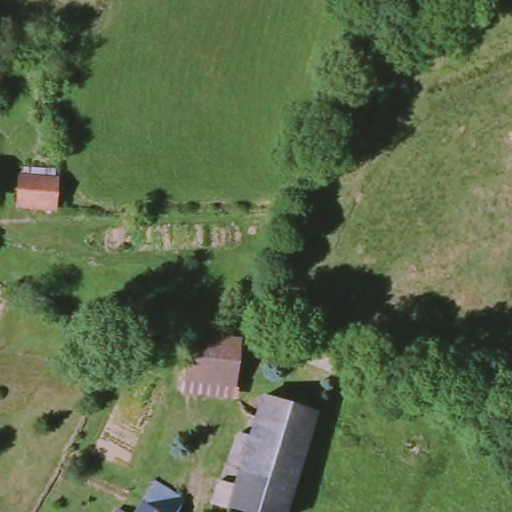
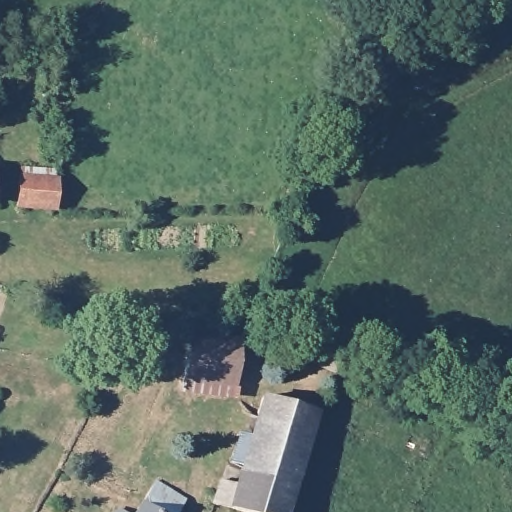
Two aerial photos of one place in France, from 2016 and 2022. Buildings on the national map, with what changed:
unchanged [(42,206),(22,205),(23,176),(42,178),(60,177),(62,206),(42,206)]
unchanged [(332,371),(310,362),(318,338),(340,346),(332,371)]
unchanged [(239,392),(189,386),(195,344),(245,350),(239,392)]
unchanged [(228,512),(212,506),(220,484),(235,490),(267,402),(319,420),(287,512),(228,512)]
unchanged [(133,512),(156,479),(187,501),(179,512),(133,512)]
unchanged [(126,512),(114,512),(118,506),(126,512)]

